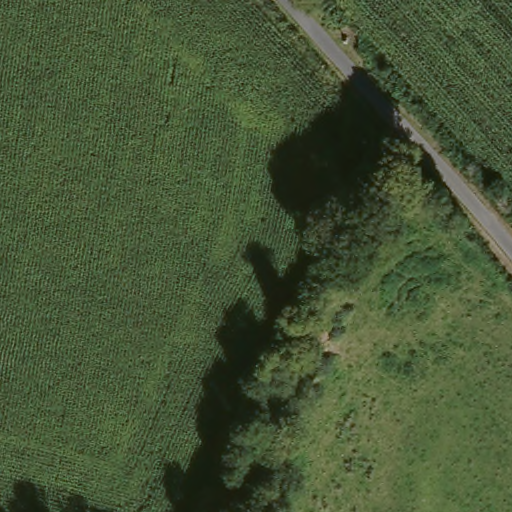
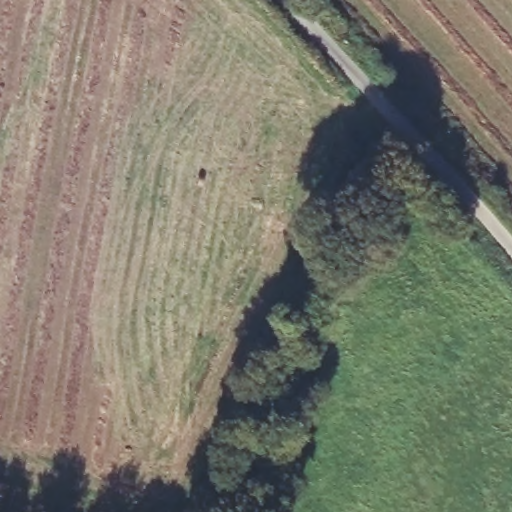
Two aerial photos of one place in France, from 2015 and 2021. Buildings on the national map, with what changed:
[]

